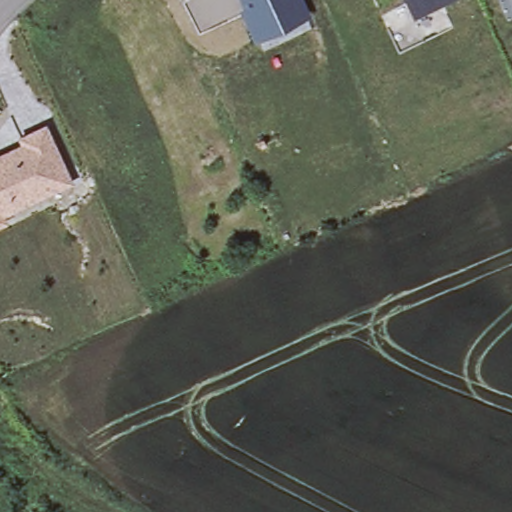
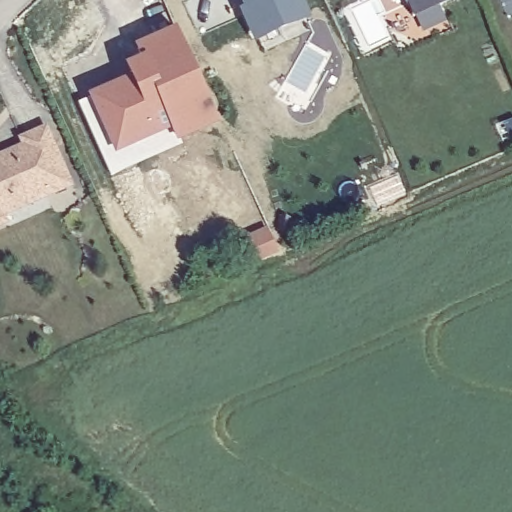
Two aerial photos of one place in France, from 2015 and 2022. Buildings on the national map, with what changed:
unchanged [(237,0),(302,0),(310,19),(256,46),(237,0)]
unchanged [(401,0),(448,0),(410,18),(401,0)]
new [(220,123),(177,142),(171,130),(114,156),(87,96),(130,77),(125,65),(140,58),(135,45),(177,26),(220,123)]
unchanged [(17,140),(42,129),(68,186),(43,197),(0,216),(0,156),(21,147),(17,140)]
unchanged [(0,224),(0,219),(2,224),(0,224)]

